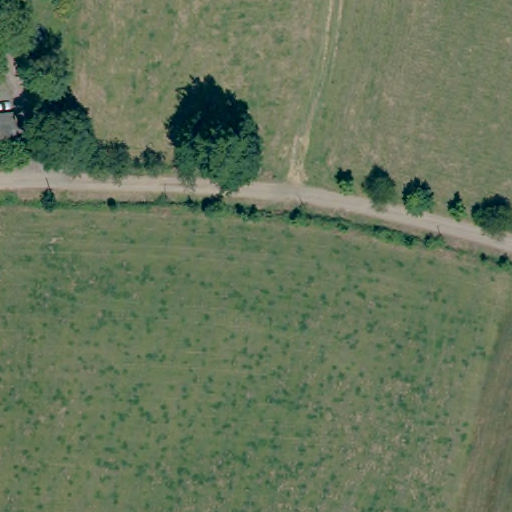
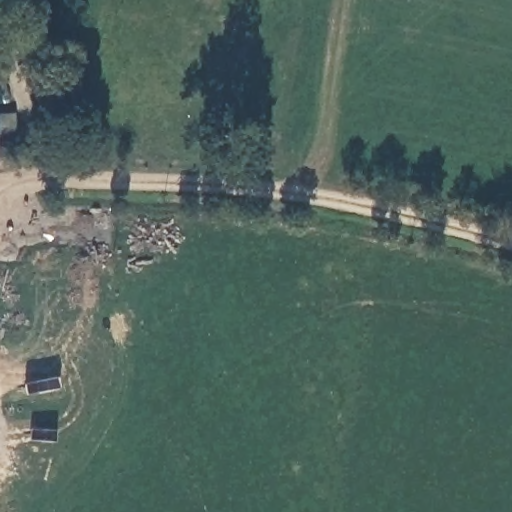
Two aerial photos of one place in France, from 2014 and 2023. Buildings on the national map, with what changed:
unchanged [(10,114),(12,134),(15,155),(0,157),(0,115),(10,114)]

